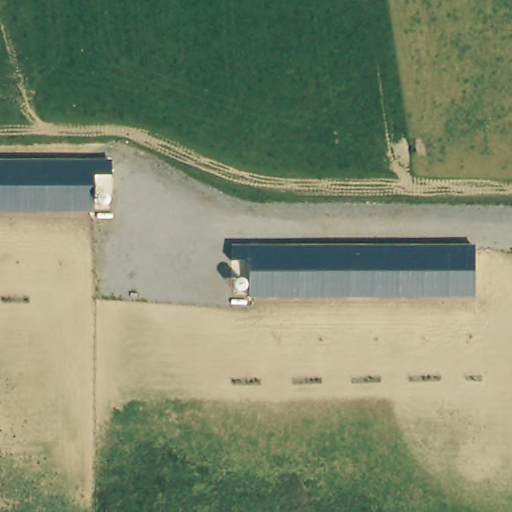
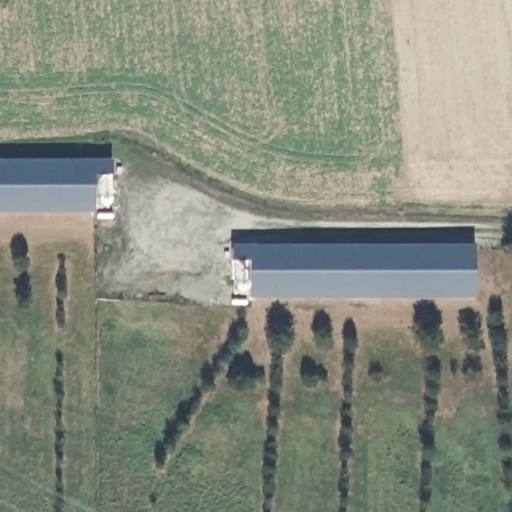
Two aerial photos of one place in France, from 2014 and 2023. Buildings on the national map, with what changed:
unchanged [(112,176),(94,176),(94,213),(0,212),(0,160),(111,161),(112,176)]
unchanged [(473,247),(475,299),(249,297),(248,263),(232,262),(232,246),(473,247)]

